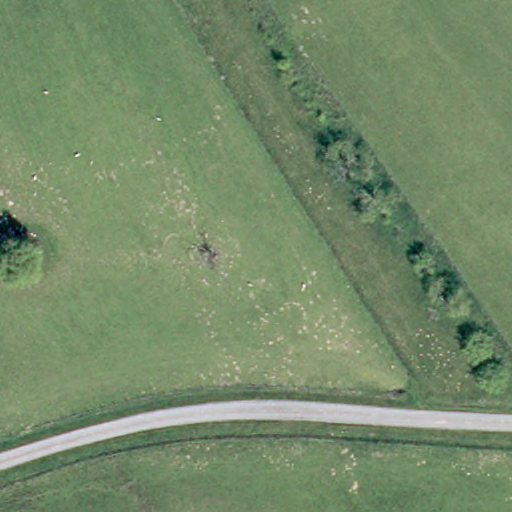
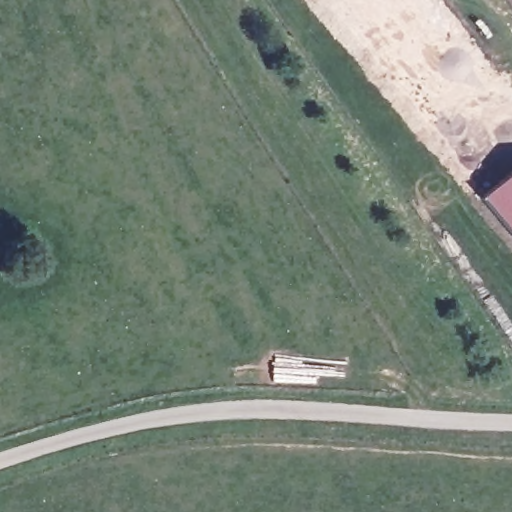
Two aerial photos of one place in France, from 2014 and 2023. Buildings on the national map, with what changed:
new [(512,167),(512,232),(480,194),(512,167)]

